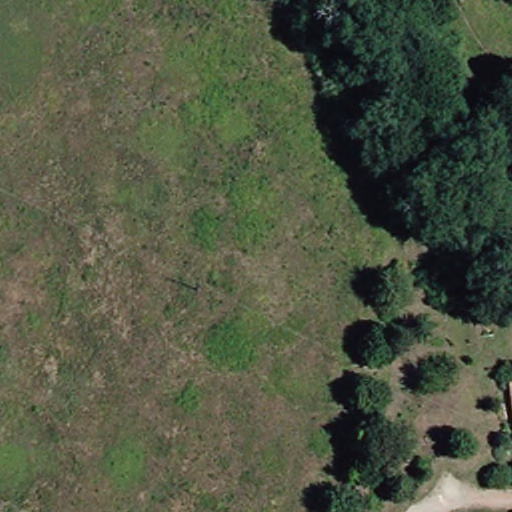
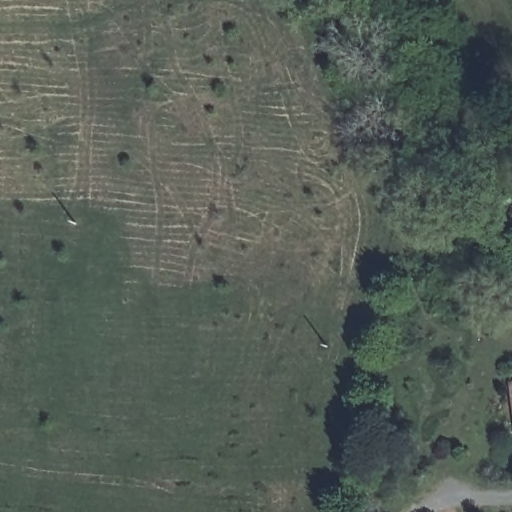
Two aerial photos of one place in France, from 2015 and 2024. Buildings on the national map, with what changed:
unchanged [(505,383),(512,382),(512,434),(505,383)]

